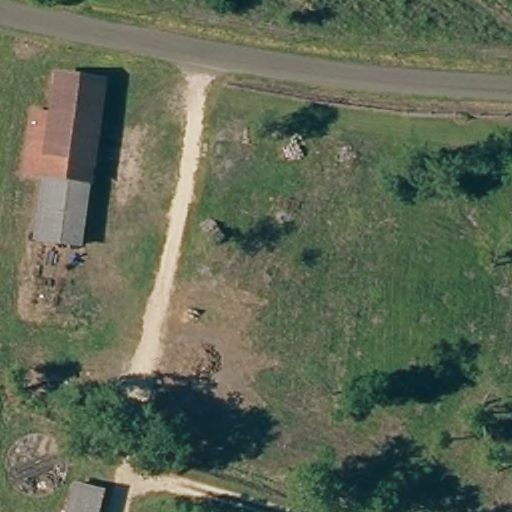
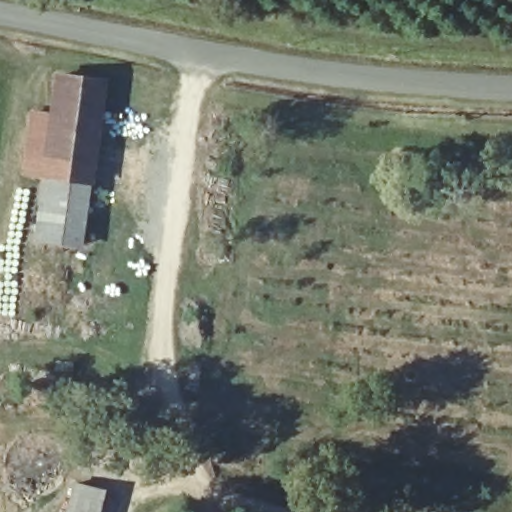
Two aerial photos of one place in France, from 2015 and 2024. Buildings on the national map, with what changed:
unchanged [(22,170),(32,111),(51,114),(57,79),(58,74),(104,80),(89,180),(40,173),(22,170)]
unchanged [(79,245),(58,242),(48,304),(24,300),(40,173),(89,180),(79,245)]
unchanged [(88,512),(63,512),(69,482),(94,487),(88,512)]

